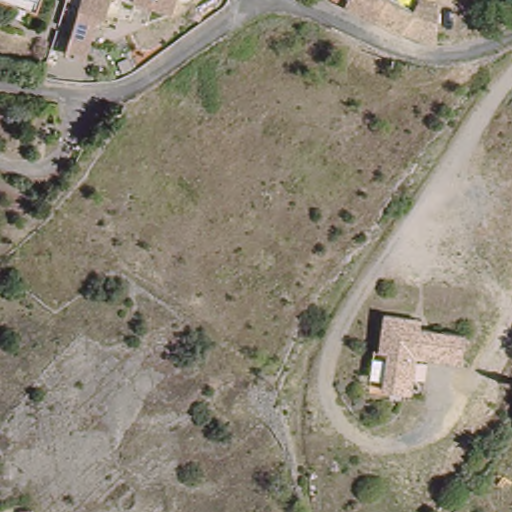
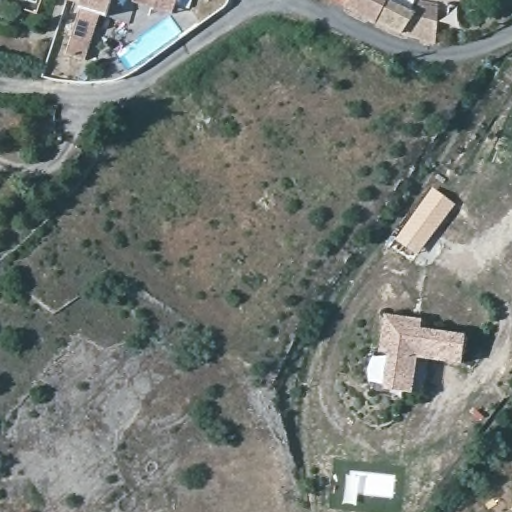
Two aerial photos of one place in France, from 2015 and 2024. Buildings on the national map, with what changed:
unchanged [(95,16),(82,61),(63,55),(82,0),(109,0),(102,18),(95,16)]
unchanged [(168,14),(129,3),(130,0),(173,0),(171,4),(168,14)]
unchanged [(437,33),(406,24),(399,38),(344,11),(327,3),(329,0),(381,0),(411,14),(415,6),(439,13),(437,33)]
new [(418,255),(396,239),(433,187),(456,204),(418,255)]
unchanged [(402,394),(379,391),(384,357),(373,355),(378,318),(405,321),(415,323),(414,332),(460,338),(457,365),(420,361),(414,396),(402,394)]

